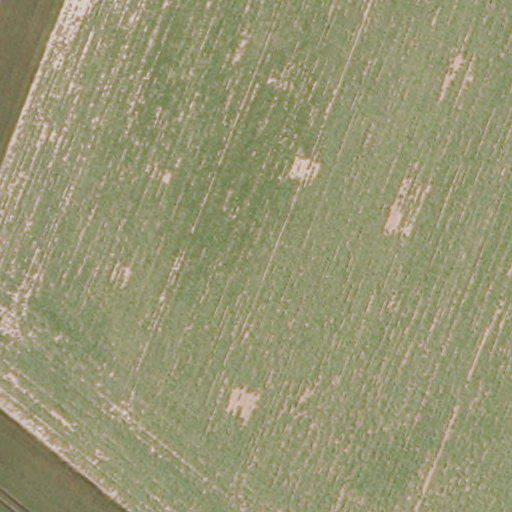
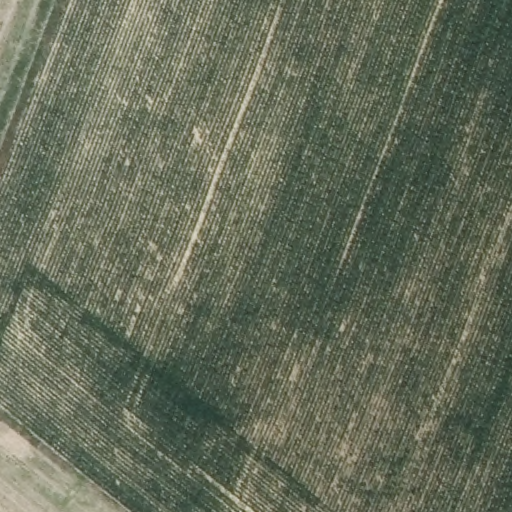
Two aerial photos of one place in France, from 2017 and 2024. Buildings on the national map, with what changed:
[]

